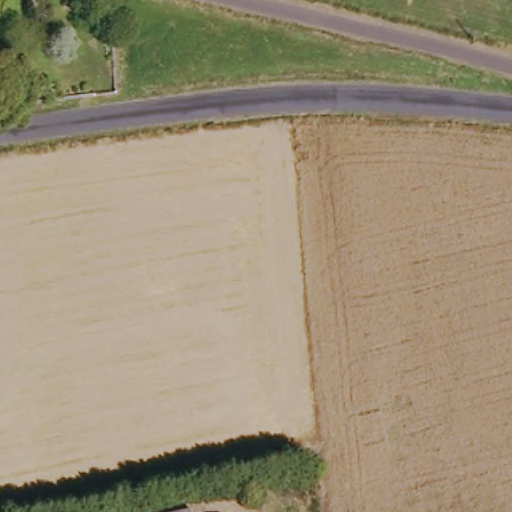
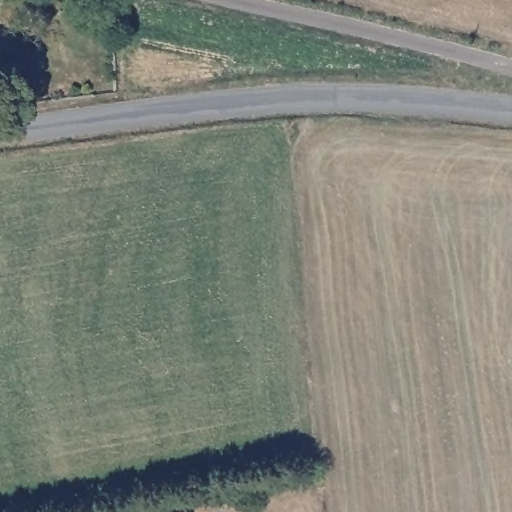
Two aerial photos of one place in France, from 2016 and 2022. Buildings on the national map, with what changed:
unchanged [(482,86),(469,85),(470,73),(483,74),(482,86)]

